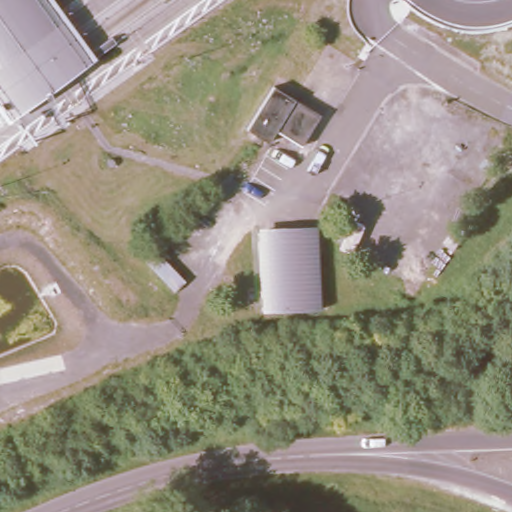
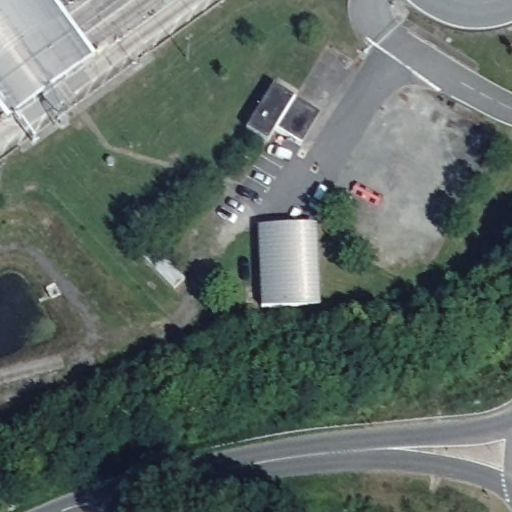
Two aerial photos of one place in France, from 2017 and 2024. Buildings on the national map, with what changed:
unchanged [(52,0),(89,52),(10,115),(0,102),(0,0),(52,0)]
unchanged [(277,128),(264,141),(245,129),(272,81),(320,111),(300,141),(277,128)]
unchanged [(319,303),(260,306),(257,223),(315,221),(319,303)]

